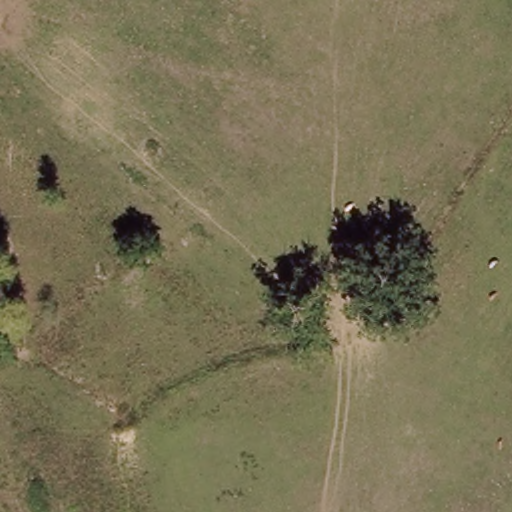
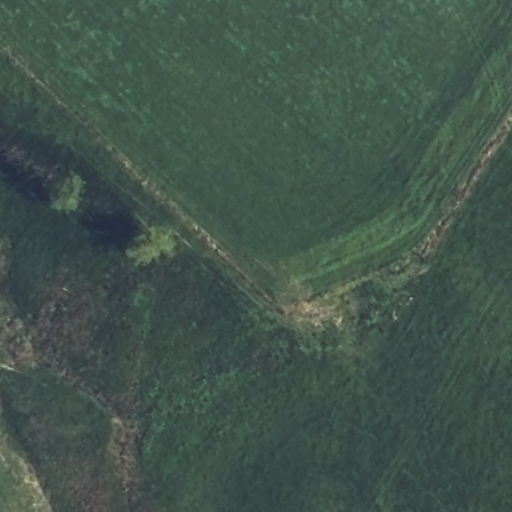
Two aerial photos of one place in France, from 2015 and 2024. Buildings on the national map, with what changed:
[]

